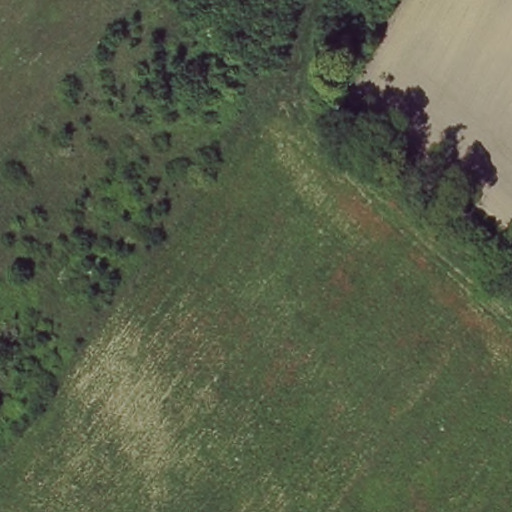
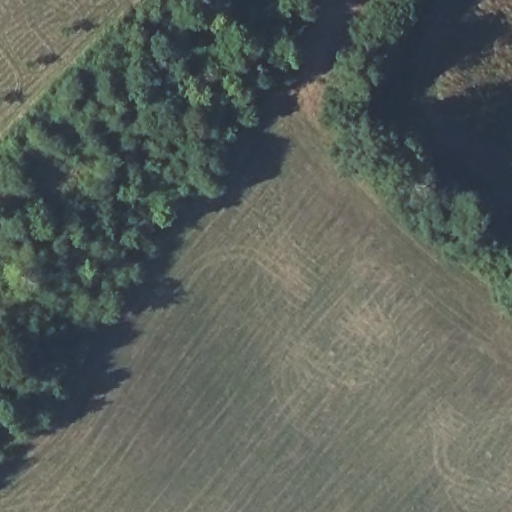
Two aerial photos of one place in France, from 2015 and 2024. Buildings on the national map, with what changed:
[]

